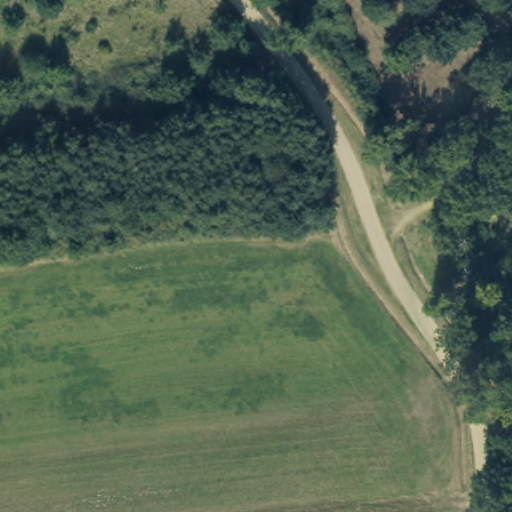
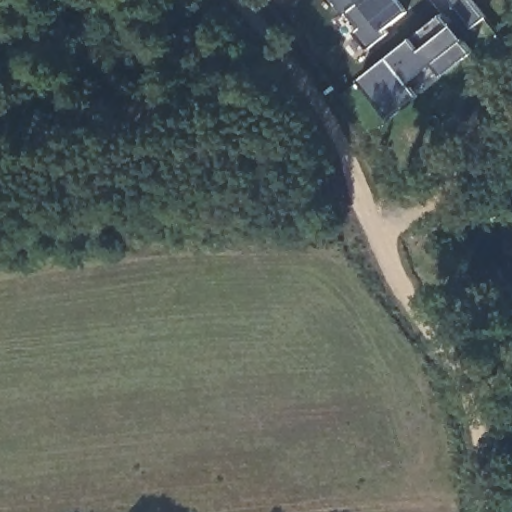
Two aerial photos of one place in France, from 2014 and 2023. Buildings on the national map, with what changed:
new [(408,13),(387,30),(390,34),(369,50),(355,33),(360,28),(348,13),(346,16),(333,0),(398,0),(408,13)]
new [(486,18),(473,29),(450,0),(472,0),(486,18)]
new [(423,96),(393,120),(361,80),(442,15),(451,26),(455,24),(467,38),(464,40),(474,53),(444,77),(439,72),(418,89),(423,96)]

